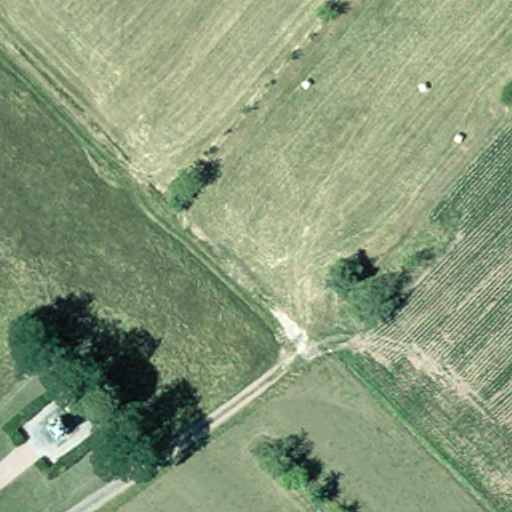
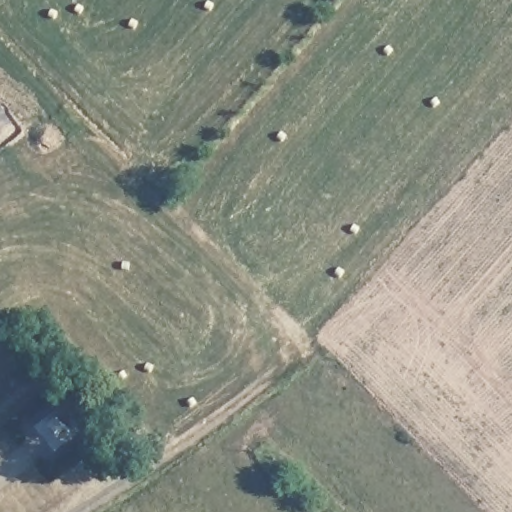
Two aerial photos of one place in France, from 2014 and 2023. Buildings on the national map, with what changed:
unchanged [(55,409),(75,435),(54,450),(34,425),(55,409)]

